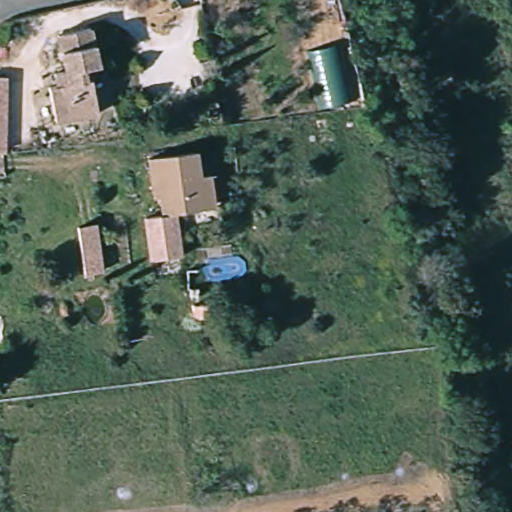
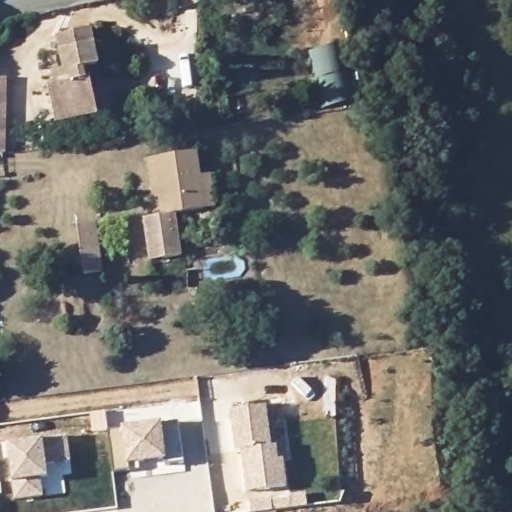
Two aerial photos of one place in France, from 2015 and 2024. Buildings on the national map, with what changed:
unchanged [(88,67),(97,116),(49,124),(44,91),(57,89),(53,71),(64,69),(58,36),(93,30),(98,65),(88,67)]
unchanged [(348,100),(326,105),(314,51),(334,46),(348,100)]
unchanged [(3,151),(0,151),(0,77),(4,77),(3,151)]
unchanged [(174,214),(179,257),(148,260),(143,218),(168,214),(163,173),(156,173),(153,154),(194,149),(203,210),(174,214)]
unchanged [(78,224),(96,222),(102,270),(100,271),(84,273),(78,224)]
new [(269,409),(274,449),(279,449),(280,464),(285,463),(288,491),(248,494),(243,453),(238,454),(234,413),(269,409)]
new [(164,466),(165,461),(128,464),(129,470),(113,473),(108,431),(123,430),(122,427),(162,422),(162,424),(179,423),(184,463),(164,466)]
new [(46,464),(48,478),(41,478),(43,497),(14,501),(11,482),(6,443),(43,439),(68,436),(70,462),(46,464)]

